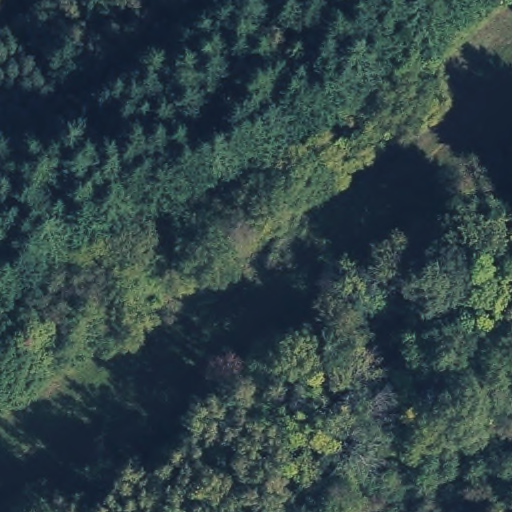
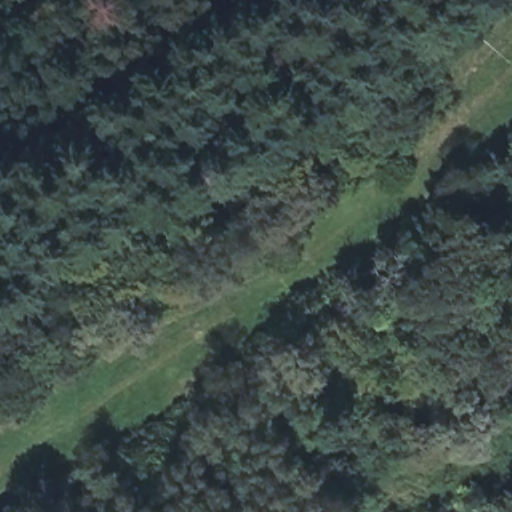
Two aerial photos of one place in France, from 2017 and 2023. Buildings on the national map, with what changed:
[]

